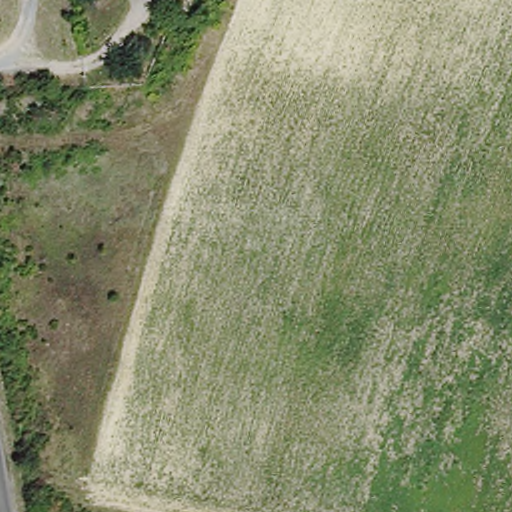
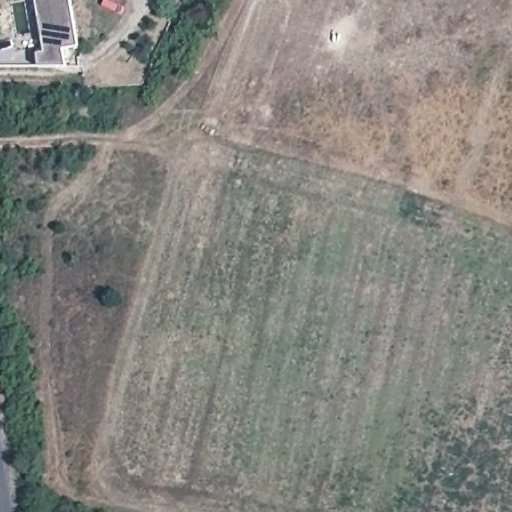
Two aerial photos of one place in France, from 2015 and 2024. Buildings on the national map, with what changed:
new [(37,53),(45,51),(35,0),(72,0),(80,47),(63,50),(67,67),(40,67),(37,53)]

